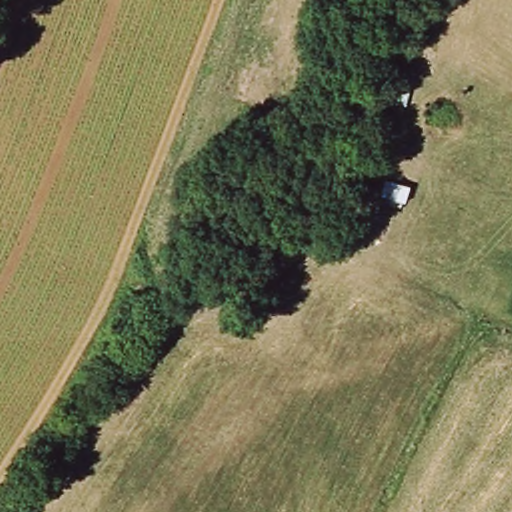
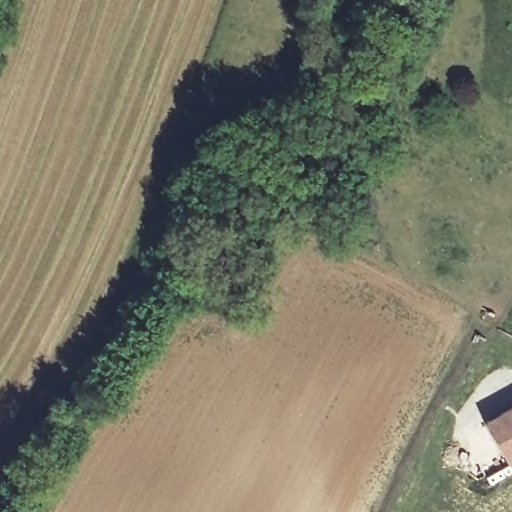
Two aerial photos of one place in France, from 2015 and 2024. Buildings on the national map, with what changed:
new [(512,411),(512,463),(506,466),(482,427),(512,411)]

